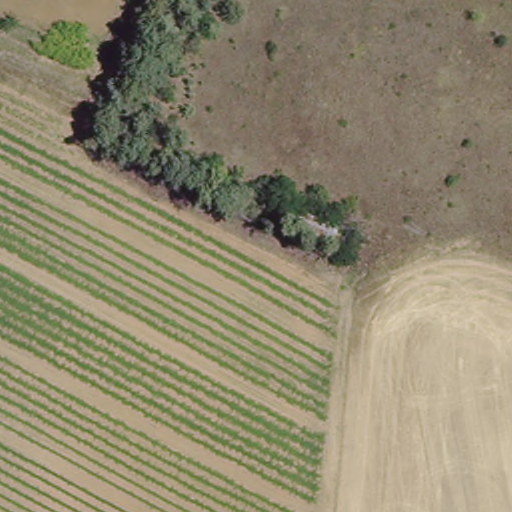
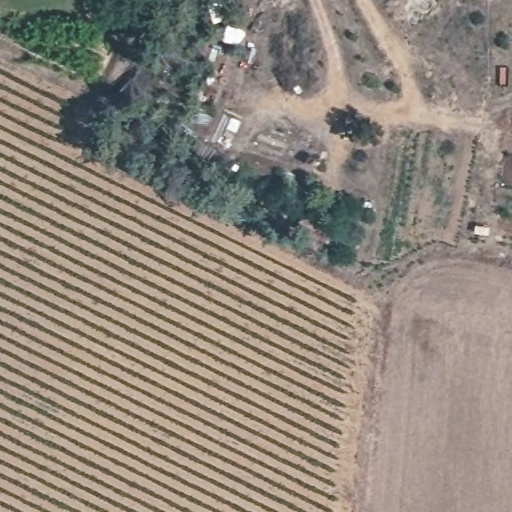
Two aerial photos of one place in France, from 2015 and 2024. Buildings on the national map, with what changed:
unchanged [(331,246),(294,228),(301,212),(340,229),(331,246)]

